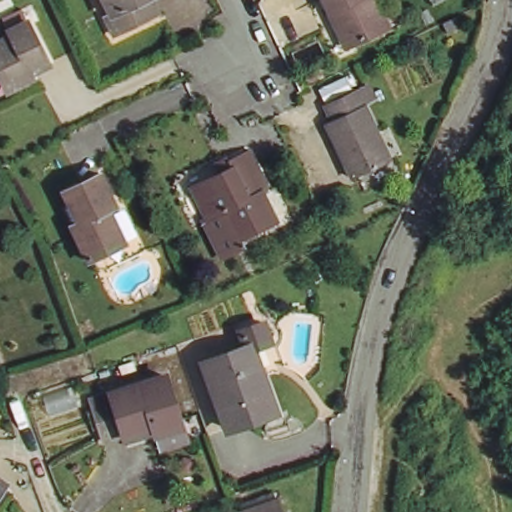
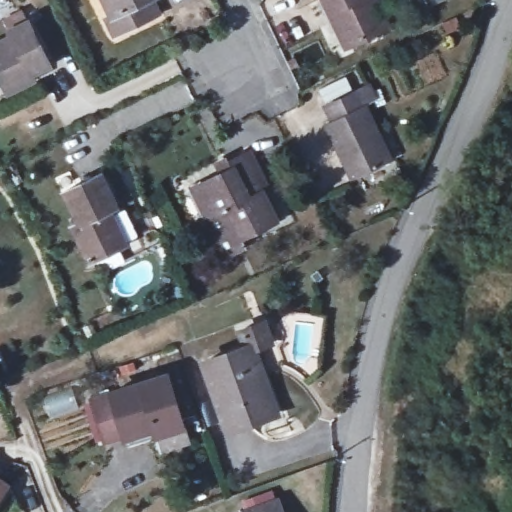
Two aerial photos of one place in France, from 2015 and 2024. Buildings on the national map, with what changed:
unchanged [(121,36),(113,20),(118,16),(110,0),(157,0),(164,15),(121,36)]
unchanged [(326,0),(378,0),(388,21),(352,39),(346,41),(330,8),(326,0)]
unchanged [(11,40),(10,35),(3,22),(23,12),(29,26),(51,70),(31,79),(33,84),(14,94),(3,73),(0,74),(0,45),(11,40)]
unchanged [(354,176),(331,126),(337,123),(330,108),(361,93),(373,88),(379,101),(368,108),(392,159),(354,176)]
unchanged [(246,244),(222,257),(202,218),(208,216),(193,186),(221,173),(215,160),(223,156),(230,160),(248,151),(266,189),(263,191),(277,219),(243,236),(246,244)]
unchanged [(102,169),(117,202),(110,205),(126,240),(90,257),(73,221),(80,218),(65,186),(102,169)]
unchanged [(233,429),(206,366),(249,352),(241,332),(262,323),(271,345),(252,351),(278,413),(233,429)]
unchanged [(91,398),(165,372),(184,422),(161,431),(157,423),(107,441),(91,398)]
unchanged [(4,487),(0,492),(0,485),(4,487)]
unchanged [(277,500),(282,512),(242,512),(277,500)]

